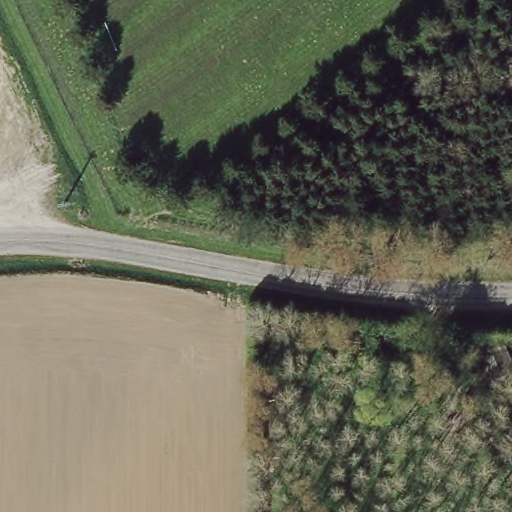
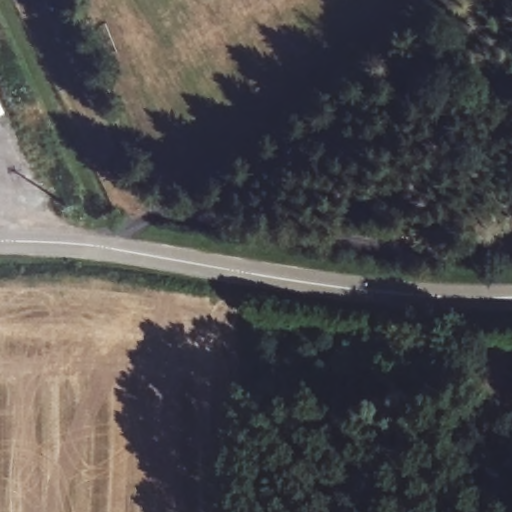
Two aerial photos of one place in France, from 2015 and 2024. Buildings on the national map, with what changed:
unchanged [(417,354),(384,352),(380,331),(417,334),(417,354)]

